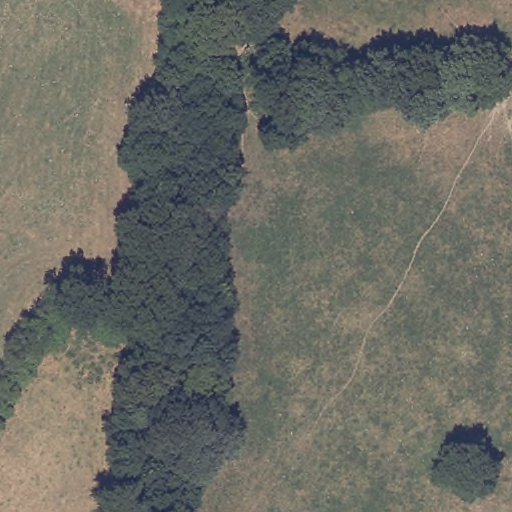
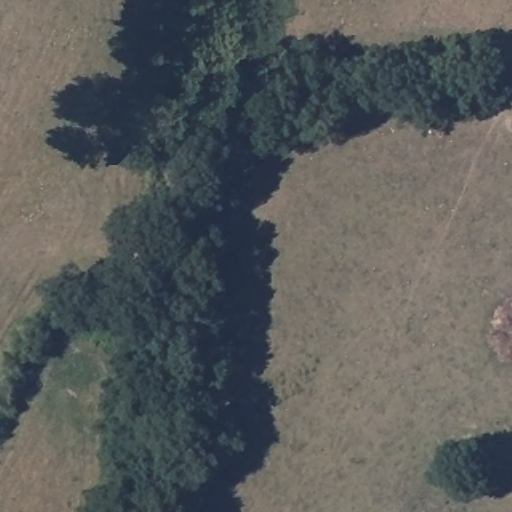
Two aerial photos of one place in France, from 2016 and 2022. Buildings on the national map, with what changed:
[]

